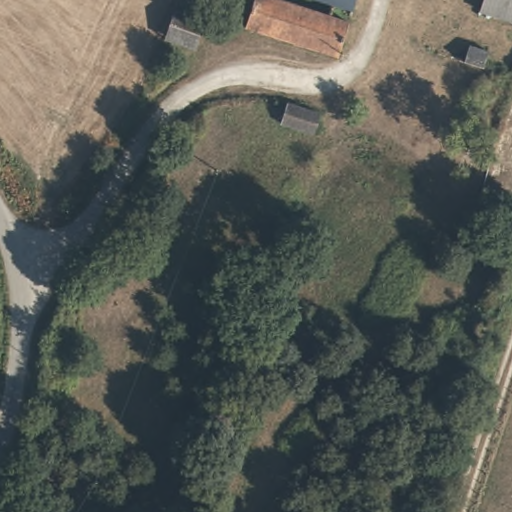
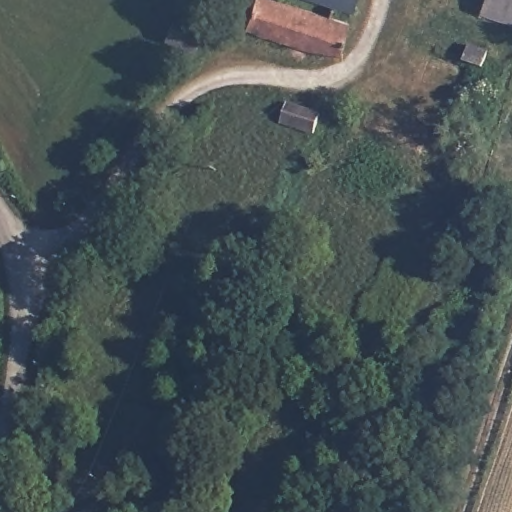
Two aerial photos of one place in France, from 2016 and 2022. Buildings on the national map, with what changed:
unchanged [(284,0),(331,17),(353,25),(342,59),(253,29),(236,23),(244,0),(271,0),(279,2),(280,0),(284,0)]
unchanged [(330,0),(354,0),(352,7),(330,0)]
unchanged [(479,10),(482,0),(512,0),(512,20),(498,16),(479,10)]
unchanged [(209,19),(197,47),(164,37),(175,7),(209,19)]
unchanged [(488,52),(483,68),(463,59),(468,45),(488,52)]
unchanged [(320,110),(313,130),(278,122),(283,102),(320,110)]

